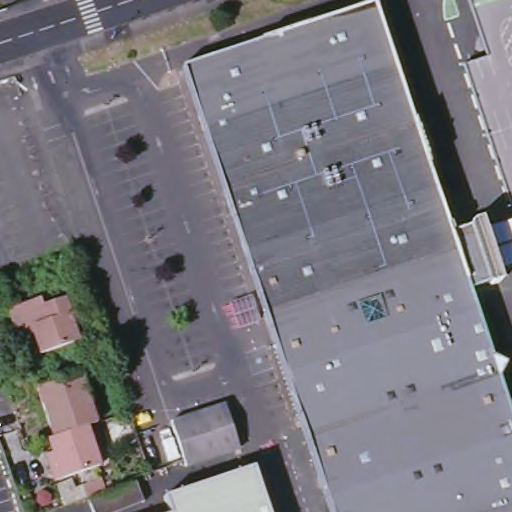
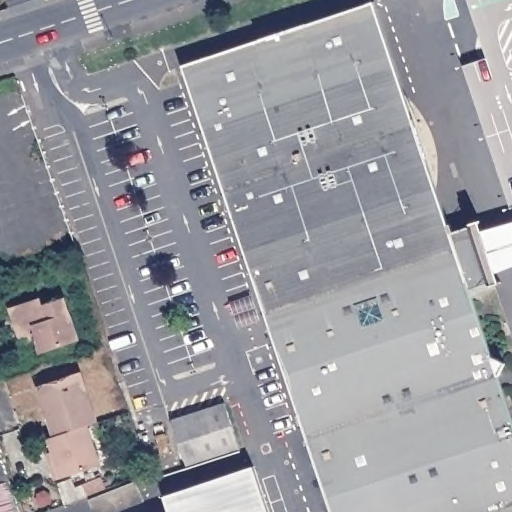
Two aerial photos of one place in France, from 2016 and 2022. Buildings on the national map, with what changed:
unchanged [(465,67),(489,59),(469,0),(512,0),(512,205),(511,205),(465,67)]
unchanged [(380,1),(457,232),(476,226),(476,224),(486,220),(479,232),(494,277),(506,282),(497,285),(496,283),(476,290),(499,357),(512,363),(505,376),(512,397),(512,512),(336,512),(188,66),(380,1)]
unchanged [(18,331),(9,308),(41,297),(43,305),(64,297),(79,340),(41,353),(34,333),(20,338),(18,331)]
unchanged [(81,372),(98,422),(87,426),(54,437),(38,387),(81,372)]
unchanged [(226,403),(239,448),(186,466),(172,421),(226,403)]
unchanged [(49,438),(54,437),(87,426),(100,465),(57,480),(50,460),(48,453),(54,451),(49,438)]
unchanged [(256,467),(270,512),(173,512),(167,496),(256,467)]
unchanged [(106,478),(111,489),(93,496),(88,486),(106,478)]
unchanged [(149,500),(119,512),(99,512),(94,499),(141,481),(149,500)]

